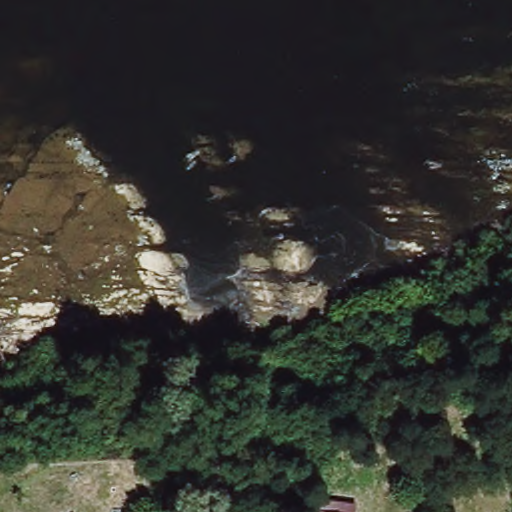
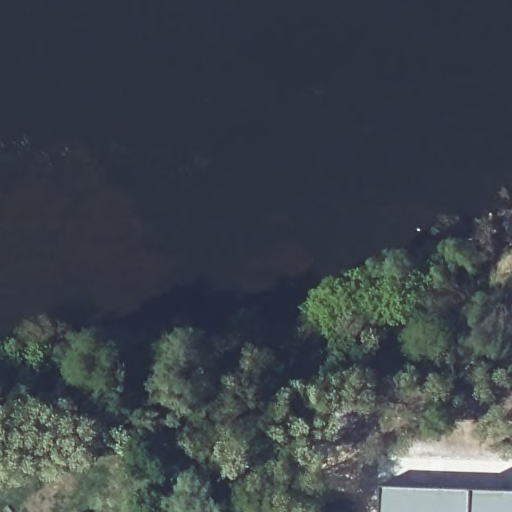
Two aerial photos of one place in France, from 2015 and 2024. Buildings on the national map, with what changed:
new [(378,485),(512,489),(512,512),(376,512),(378,485)]
unchanged [(355,512),(309,512),(311,497),(356,506),(355,512)]

